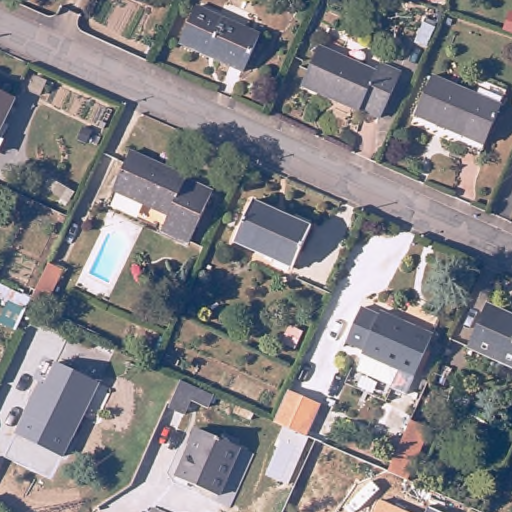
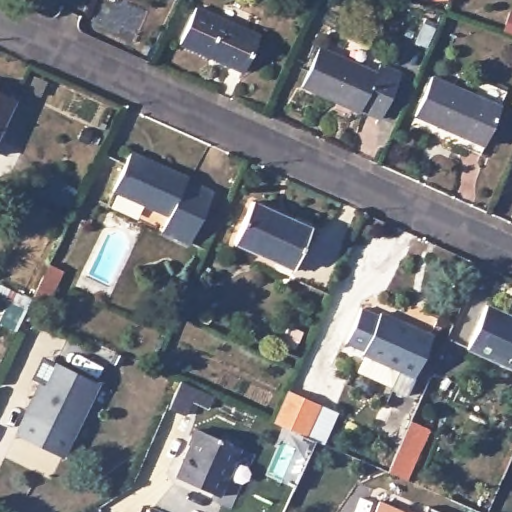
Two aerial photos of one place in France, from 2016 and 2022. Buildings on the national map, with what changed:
unchanged [(201,6),(264,34),(248,70),(184,41),(201,6)]
unchanged [(512,16),(512,34),(506,32),(511,16),(512,16)]
unchanged [(323,48),(380,73),(384,65),(406,75),(385,120),(365,111),(363,114),(305,87),(323,48)]
unchanged [(434,71),(504,103),(482,151),(461,142),(465,131),(417,110),(434,71)]
unchanged [(0,129),(0,86),(16,94),(0,129)]
unchanged [(131,146),(189,172),(189,174),(215,186),(193,238),(166,225),(172,210),(115,185),(131,146)]
unchanged [(256,200),(315,227),(297,268),(238,241),(256,200)]
unchanged [(48,266),(62,274),(50,298),(36,291),(48,266)]
unchanged [(464,339),(483,298),(507,309),(509,304),(512,306),(512,361),(464,339)]
unchanged [(366,302),(383,310),(385,307),(436,331),(418,371),(402,363),(395,379),(363,364),(370,348),(367,347),(368,345),(350,336),(366,302)]
unchanged [(39,386),(45,388),(56,366),(98,387),(71,440),(23,417),(39,386)]
unchanged [(174,386),(176,380),(208,395),(203,408),(186,401),(180,415),(165,409),(174,386)]
unchanged [(323,408),(309,440),(277,426),(291,394),(323,408)]
unchanged [(200,425),(242,443),(221,491),(179,473),(200,425)]
unchanged [(379,505),(396,512),(376,512),(379,505)]
unchanged [(160,506),(175,512),(156,512),(160,506)]

